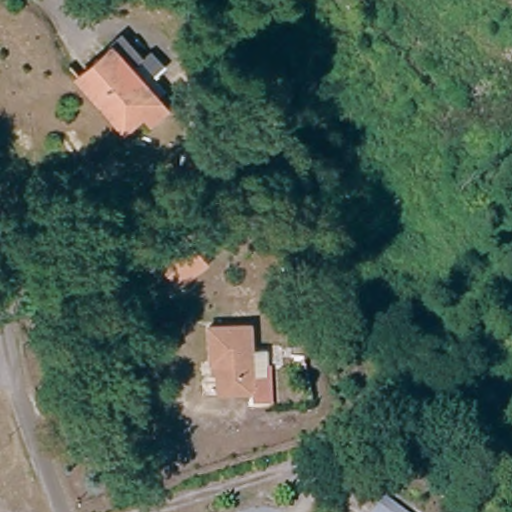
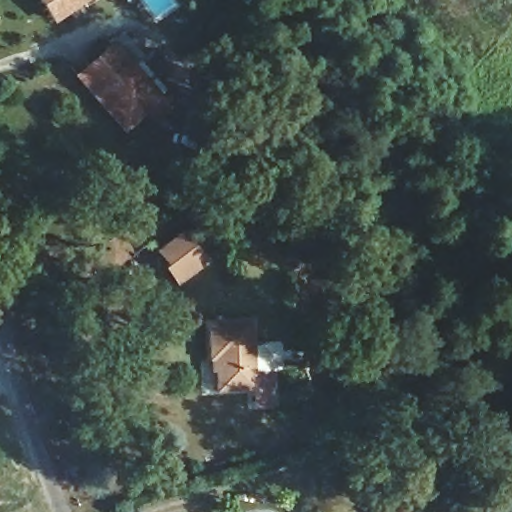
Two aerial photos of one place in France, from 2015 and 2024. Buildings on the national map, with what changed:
new [(38,0),(89,0),(55,23),(38,0)]
unchanged [(151,123),(142,115),(135,122),(125,131),(89,94),(74,80),(109,43),(162,96),(171,105),(151,123)]
unchanged [(205,263),(175,282),(162,262),(172,256),(162,239),(184,228),(205,263)]
unchanged [(210,321),(252,321),(252,364),(273,366),(274,403),(252,404),(252,388),(220,387),(220,363),(210,356),(210,321)]
unchanged [(388,501),(404,512),(379,512),(388,501)]

